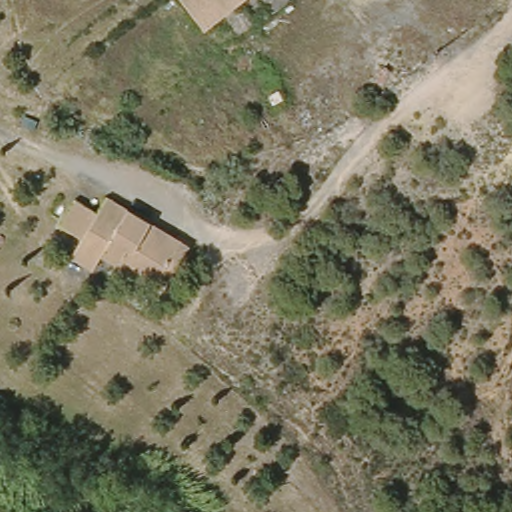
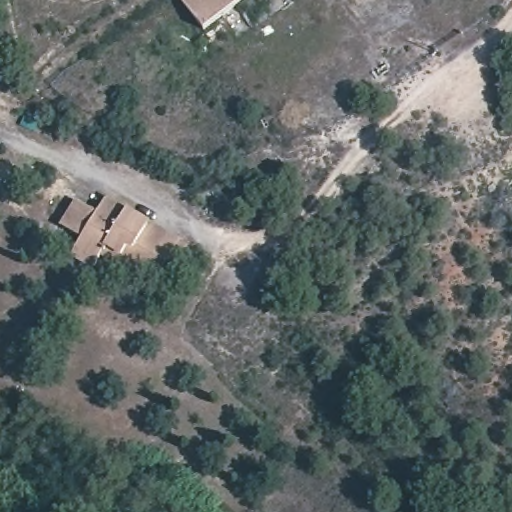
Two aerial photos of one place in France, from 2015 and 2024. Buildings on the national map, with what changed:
unchanged [(183,0),(243,0),(202,29),(183,0)]
unchanged [(102,257),(96,268),(77,257),(110,199),(185,240),(165,276),(108,245),(102,257)]

